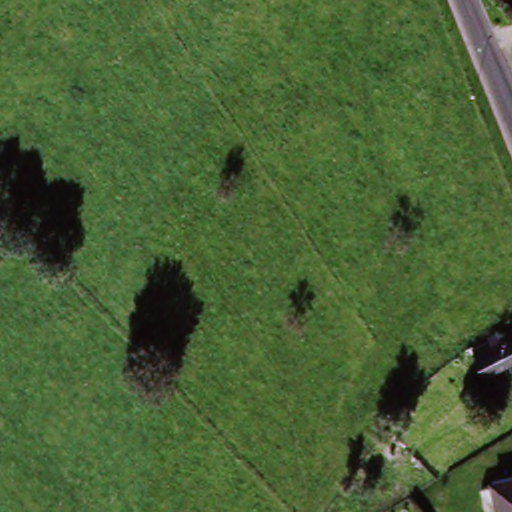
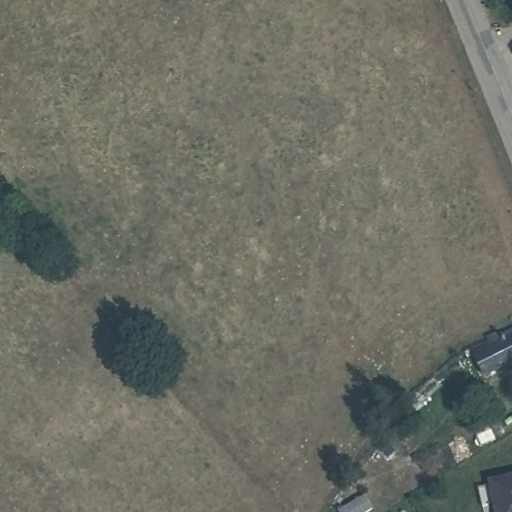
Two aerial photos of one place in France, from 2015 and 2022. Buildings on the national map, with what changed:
unchanged [(512,335),(512,361),(503,365),(479,375),(470,353),(512,335)]
unchanged [(512,482),(512,512),(495,512),(487,488),(512,482)]

